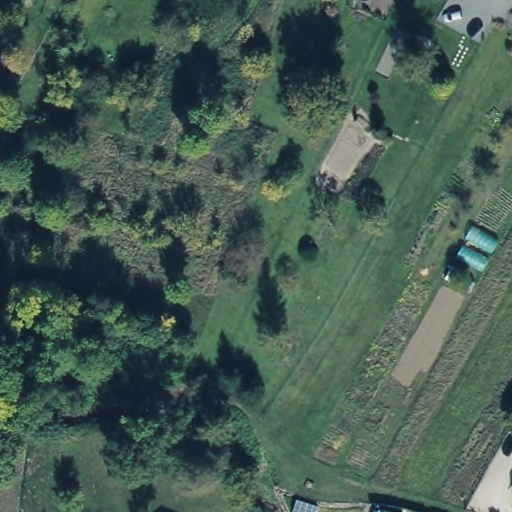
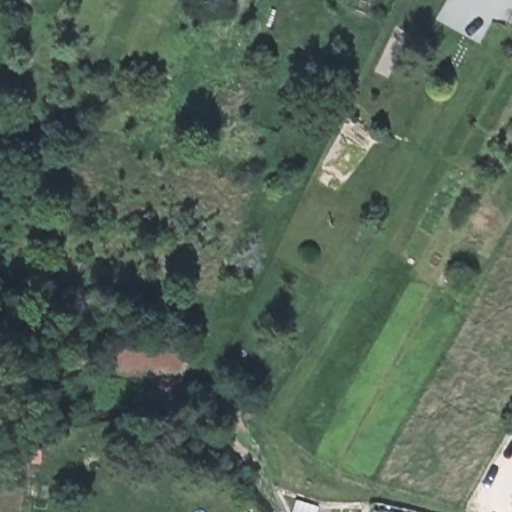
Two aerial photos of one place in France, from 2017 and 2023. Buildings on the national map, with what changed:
unchanged [(512,503),(509,502),(512,496),(512,503)]

